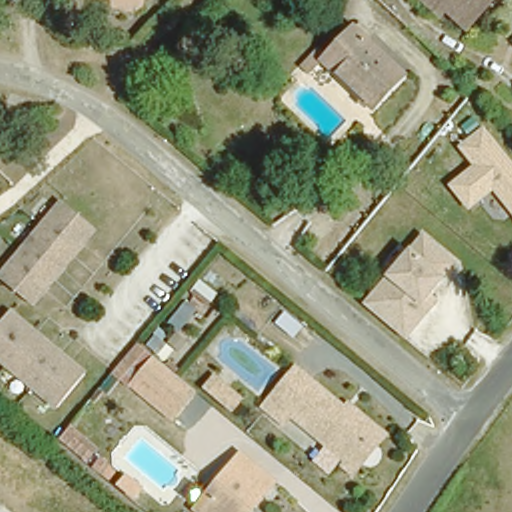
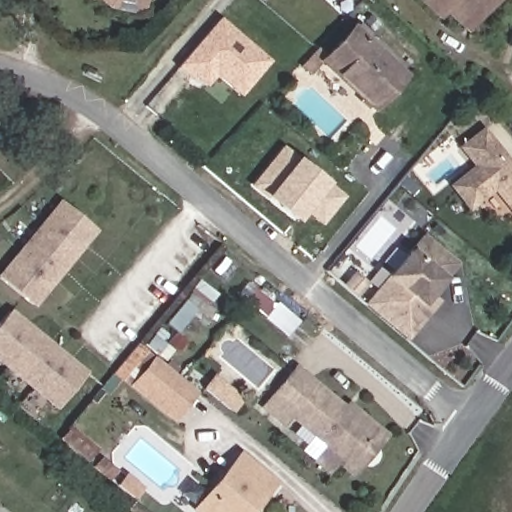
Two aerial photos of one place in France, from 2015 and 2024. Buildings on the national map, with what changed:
unchanged [(140,2),(129,11),(107,5),(103,0),(141,0),(140,2)]
unchanged [(469,18),(451,3),(444,11),(431,0),(494,0),(474,22),(469,18)]
new [(215,17),(264,60),(235,94),(211,72),(202,84),(190,74),(187,77),(174,66),(215,17)]
unchanged [(309,56),(324,41),(334,49),(358,25),(362,25),(367,21),(376,29),(369,35),(408,72),(380,102),(328,56),(319,65),(309,56)]
unchanged [(494,193),(470,213),(447,186),(474,166),(459,145),(484,126),(512,161),(512,214),(494,193)]
new [(304,212),(296,223),(251,183),(281,146),(344,196),(320,226),(304,212)]
unchanged [(52,202),(84,229),(65,251),(31,226),(52,202)]
unchanged [(24,300),(0,281),(0,263),(31,226),(65,251),(24,300)]
unchanged [(434,293),(443,301),(409,341),(364,302),(387,277),(412,248),(425,234),(461,264),(447,279),(434,293)]
new [(285,338),(242,300),(254,287),(297,325),(285,338)]
unchanged [(48,408),(0,370),(0,316),(75,376),(48,408)]
unchanged [(130,357),(114,375),(108,370),(124,351),(130,357)]
unchanged [(188,395),(167,417),(126,385),(146,361),(188,395)]
unchanged [(269,411),(277,401),(303,370),(334,395),(307,423),(299,418),(290,428),(269,411)]
unchanged [(239,400),(229,410),(204,390),(214,380),(239,400)]
unchanged [(353,411),(382,435),(358,465),(307,423),(334,395),(353,411)]
new [(69,426),(95,448),(85,460),(59,438),(69,426)]
unchanged [(239,451),(274,480),(252,507),(247,512),(201,512),(193,505),(239,451)]

